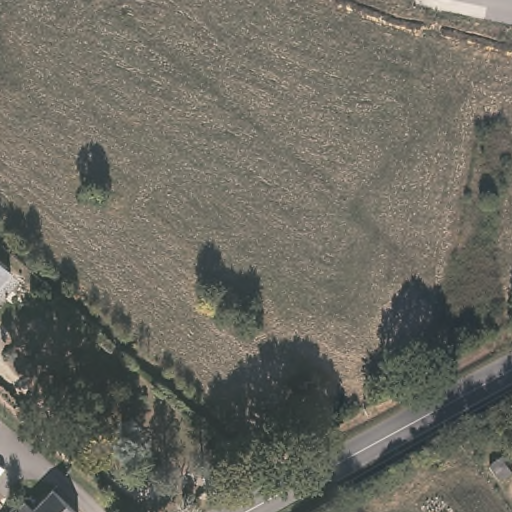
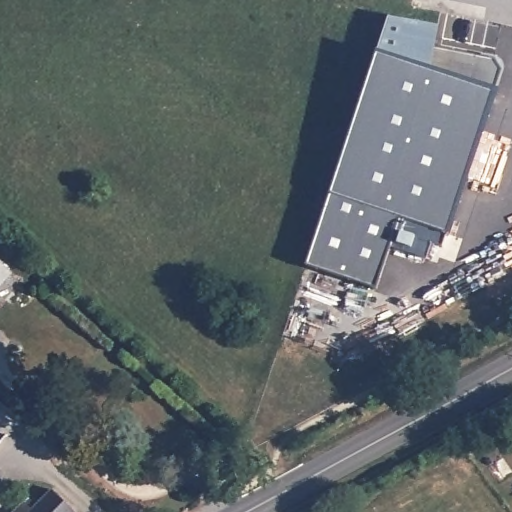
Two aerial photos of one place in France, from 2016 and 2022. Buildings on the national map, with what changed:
new [(448,231),(442,229),(442,245),(431,242),(425,256),(390,245),(376,287),(307,264),(330,194),(378,54),(376,51),(388,16),(439,27),(434,48),(490,57),(496,61),(499,68),(484,85),(498,90),(448,231)]
unchanged [(11,272),(0,284),(0,263),(11,272)]
unchanged [(12,512),(24,500),(33,508),(50,491),(76,512),(12,512)]

